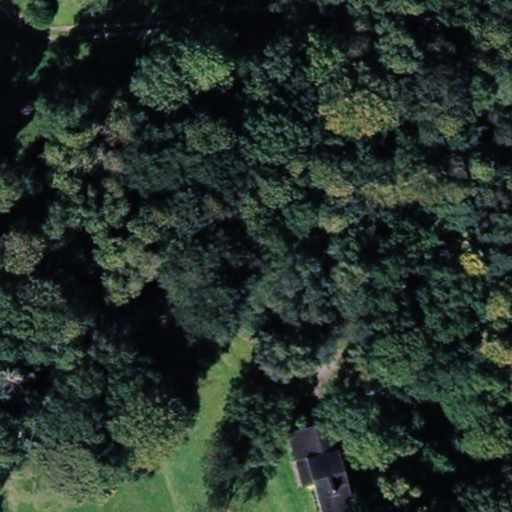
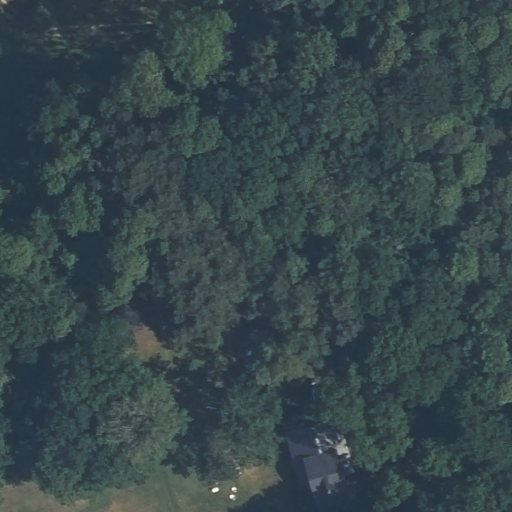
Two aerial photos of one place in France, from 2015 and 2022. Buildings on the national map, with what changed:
unchanged [(339,470),(342,478),(348,477),(359,505),(335,512),(322,512),(309,478),(301,480),(281,432),(326,415),(349,466),(339,470)]

